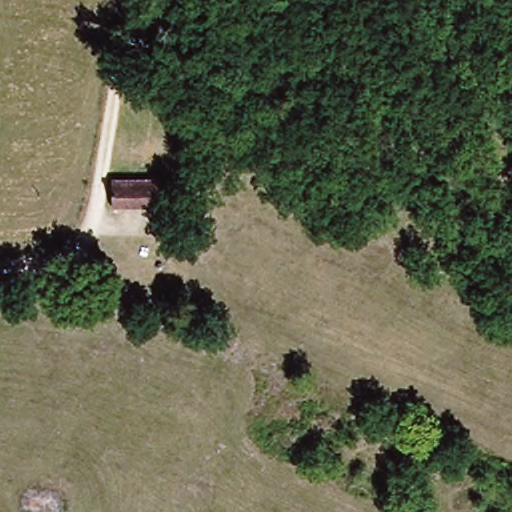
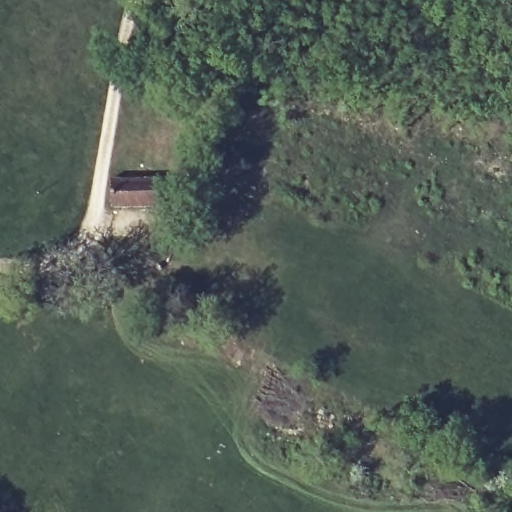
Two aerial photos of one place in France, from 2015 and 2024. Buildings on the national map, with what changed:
unchanged [(157,212),(104,204),(108,171),(162,180),(157,212)]

